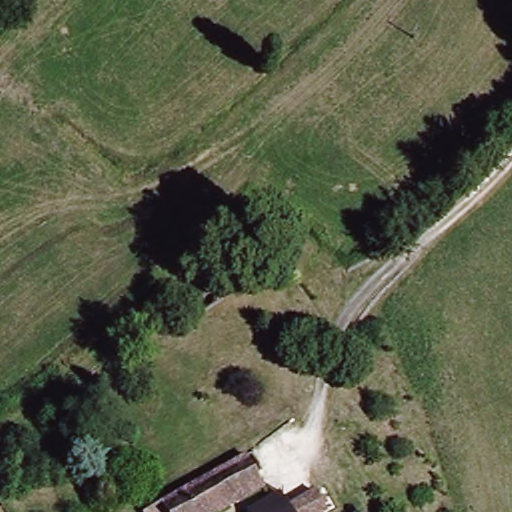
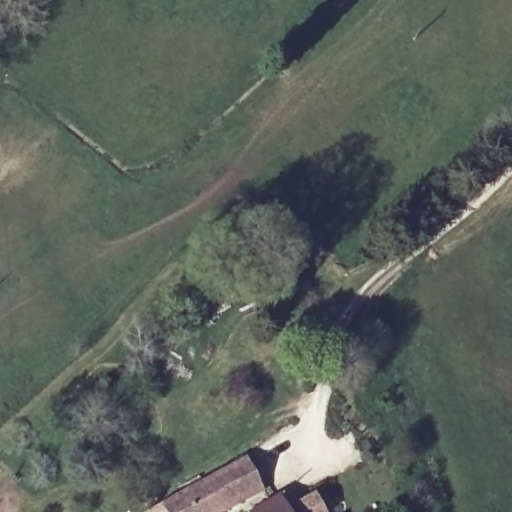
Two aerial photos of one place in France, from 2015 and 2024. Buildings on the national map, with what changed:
unchanged [(231,512),(155,512),(239,464),(257,497),(231,512)]
unchanged [(290,506),(322,492),(330,512),(254,512),(283,497),(290,506)]

